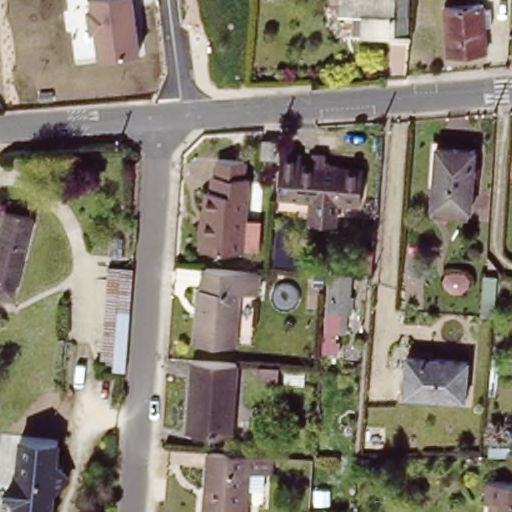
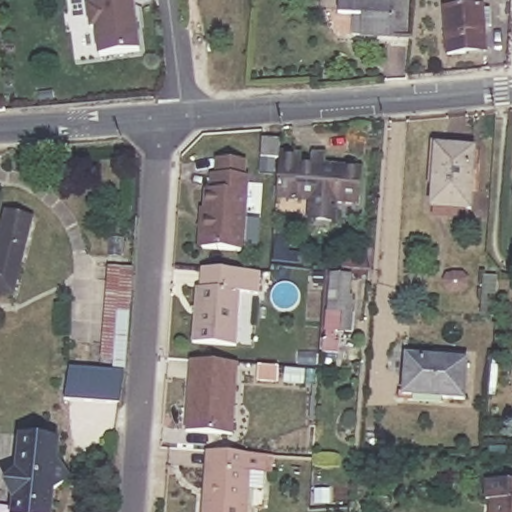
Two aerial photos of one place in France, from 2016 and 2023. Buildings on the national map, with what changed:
unchanged [(98,60),(95,30),(90,31),(87,6),(91,6),(91,0),(135,0),(142,55),(98,60)]
unchanged [(340,10),(340,0),(408,0),(407,35),(363,33),(355,33),(355,11),(340,10)]
unchanged [(483,15),(490,15),(491,31),(483,31),(485,56),(447,59),(444,11),(482,9),(483,15)]
unchanged [(259,158),(260,139),(281,140),(280,150),(303,151),(302,168),(309,168),(310,151),(327,151),(325,162),(361,167),(358,207),(340,205),(338,230),(306,226),(308,201),(275,198),(277,159),(259,158)]
unchanged [(435,145),(475,148),(470,207),(432,203),(435,145)]
unchanged [(200,247),(205,190),(210,190),(211,174),(215,174),(216,159),(244,161),(243,176),(246,177),(243,218),(258,219),(255,249),(241,248),(240,250),(200,247)]
unchanged [(37,221),(17,298),(0,296),(0,261),(12,214),(37,221)]
unchanged [(305,239),(303,268),(272,264),(275,235),(305,239)]
unchanged [(132,267),(125,373),(113,371),(112,358),(100,358),(107,265),(132,267)]
unchanged [(352,273),(350,293),(352,294),(352,313),(347,313),(346,334),(336,333),(336,340),(339,340),(338,354),(322,352),(322,338),(325,338),(329,272),(352,273)]
unchanged [(497,274),(494,312),(482,310),(485,272),(497,274)]
unchanged [(260,277),(258,297),(242,296),(237,351),(193,348),(197,293),(202,293),(203,273),(260,277)]
unchanged [(462,364),(458,404),(398,398),(402,359),(462,364)]
new [(72,364),(113,371),(125,373),(122,403),(67,397),(72,364)]
unchanged [(237,368),(232,440),(185,437),(191,366),(237,368)]
unchanged [(50,512),(13,512),(15,502),(12,496),(8,487),(13,479),(17,474),(19,458),(20,455),(22,437),(58,441),(56,460),(56,465),(68,480),(52,492),(50,512)]
unchanged [(302,475),(267,472),(265,491),(252,491),(251,512),(207,512),(209,487),(212,452),(215,452),(303,458),(302,475)]
unchanged [(488,498),(484,498),(485,479),(512,481),(512,512),(487,512),(488,498)]

